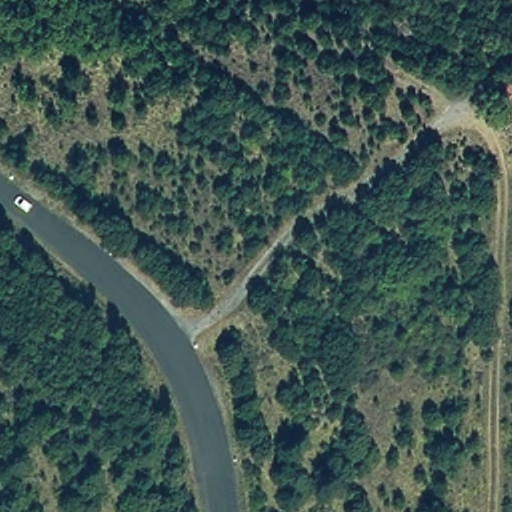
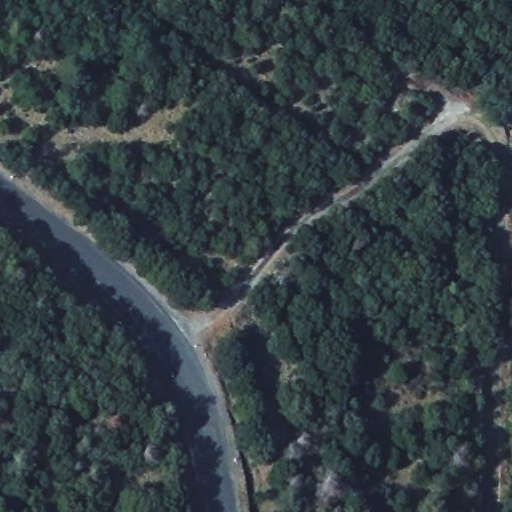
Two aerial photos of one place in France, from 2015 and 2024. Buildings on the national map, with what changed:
unchanged [(502,96),(501,79),(512,75),(512,94),(502,96)]

